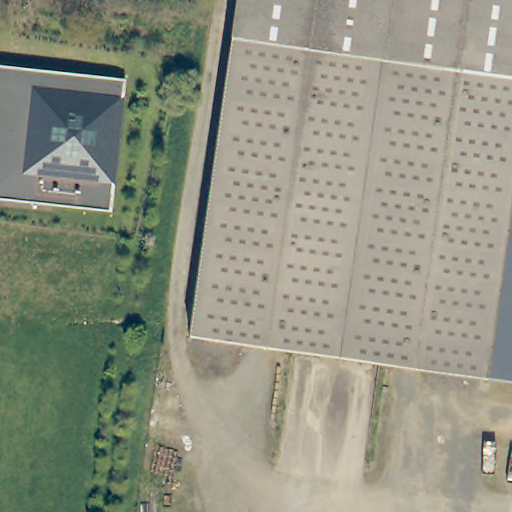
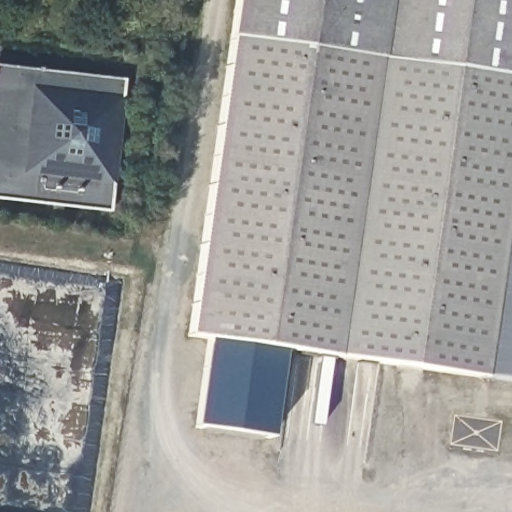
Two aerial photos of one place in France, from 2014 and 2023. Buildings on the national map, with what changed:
unchanged [(233,0),(512,0),(512,79),(227,41),(233,0)]
unchanged [(512,79),(512,154),(217,114),(227,41),(512,79)]
unchanged [(107,76),(131,79),(117,208),(101,206),(0,195),(0,66),(107,76)]
unchanged [(512,382),(187,336),(217,114),(512,154),(512,382)]
new [(197,429),(206,339),(284,350),(272,437),(197,429)]

